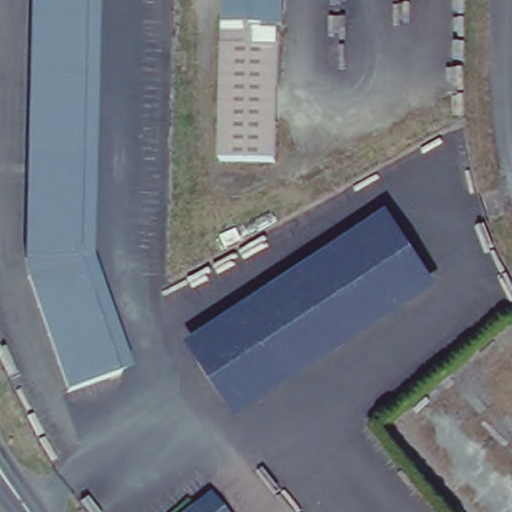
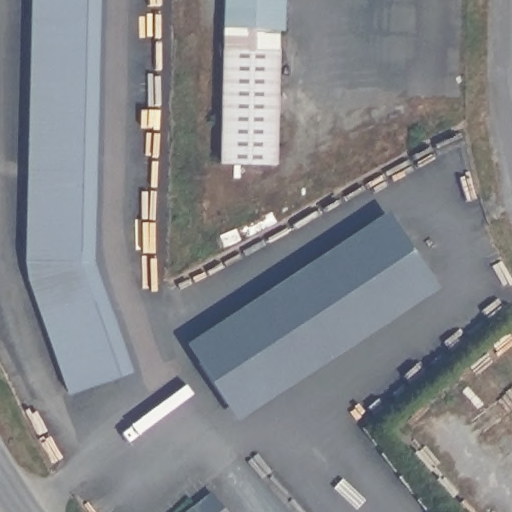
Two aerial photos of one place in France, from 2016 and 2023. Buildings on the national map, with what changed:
unchanged [(116,377),(63,393),(27,281),(25,272),(25,263),(28,0),(83,0),(80,262),(116,377)]
unchanged [(221,20),(222,0),(281,0),(281,22),(221,20)]
unchanged [(220,46),(275,46),(275,163),(217,164),(220,46)]
unchanged [(394,206),(445,284),(241,416),(194,338),(394,206)]
unchanged [(206,493),(222,512),(184,512),(206,493)]

